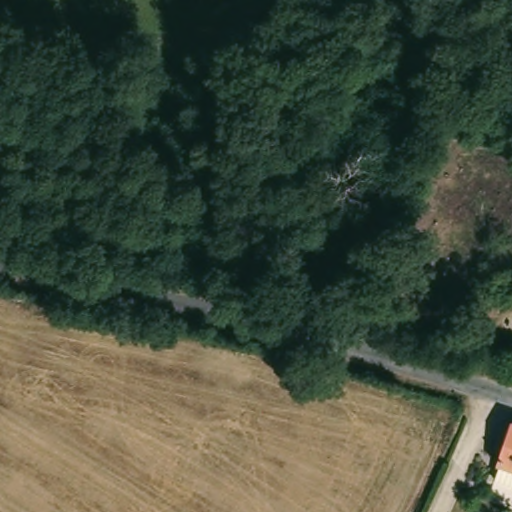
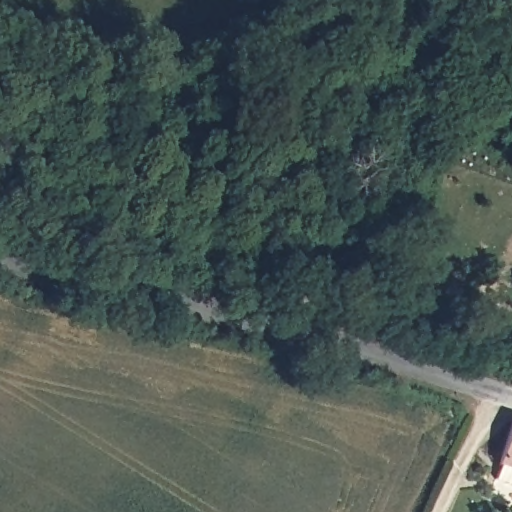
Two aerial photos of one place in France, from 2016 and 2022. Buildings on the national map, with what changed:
unchanged [(499,470),(500,467),(498,466),(512,423),(512,485),(494,479),(499,470)]

